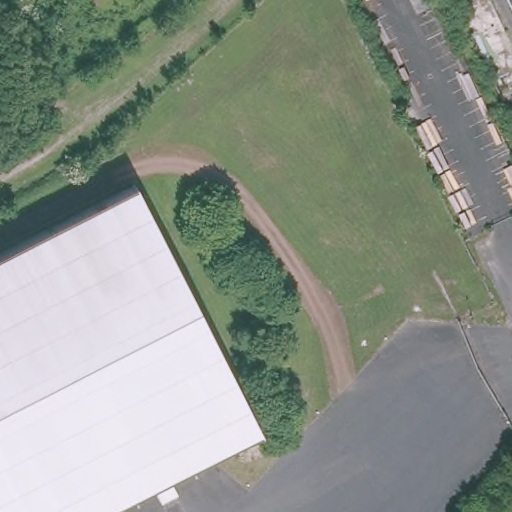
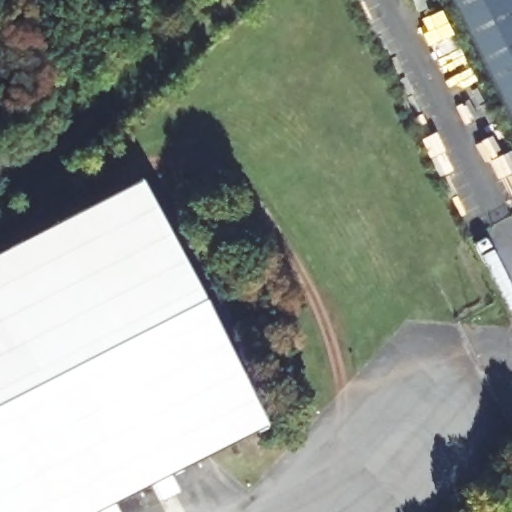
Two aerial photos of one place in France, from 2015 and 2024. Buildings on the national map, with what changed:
unchanged [(417,14),(408,0),(423,0),(427,9),(417,14)]
new [(510,0),(512,5),(512,129),(448,0),(510,0)]
unchanged [(512,0),(512,5),(510,0),(512,0)]
unchanged [(129,186),(255,428),(165,475),(175,492),(150,505),(141,490),(110,506),(114,512),(0,512),(0,251),(129,186)]

